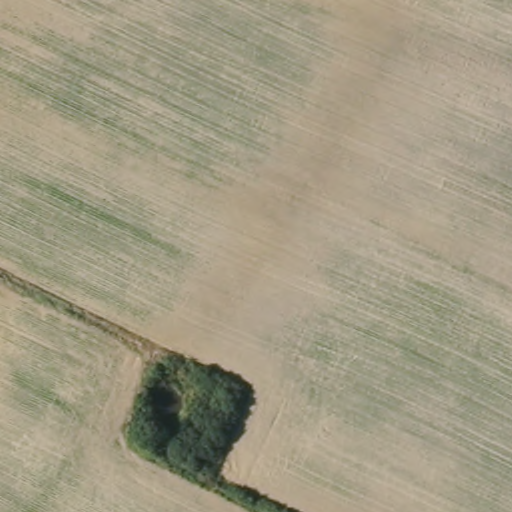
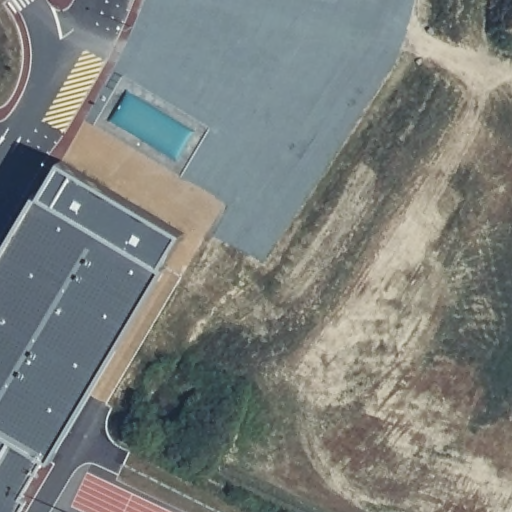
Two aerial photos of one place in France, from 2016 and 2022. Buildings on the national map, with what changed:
new [(24,512),(0,512),(0,270),(64,168),(182,240),(24,512)]

